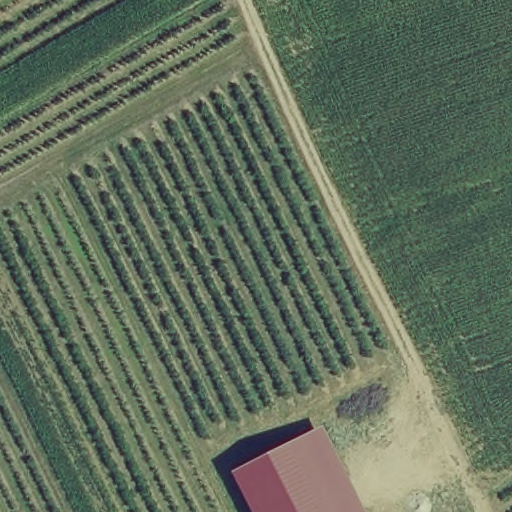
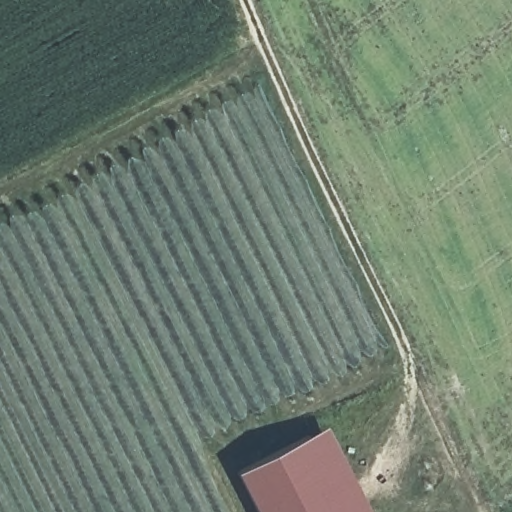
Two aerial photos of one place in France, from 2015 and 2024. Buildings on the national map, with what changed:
unchanged [(371,512),(256,512),(235,470),(327,424),(371,512)]

